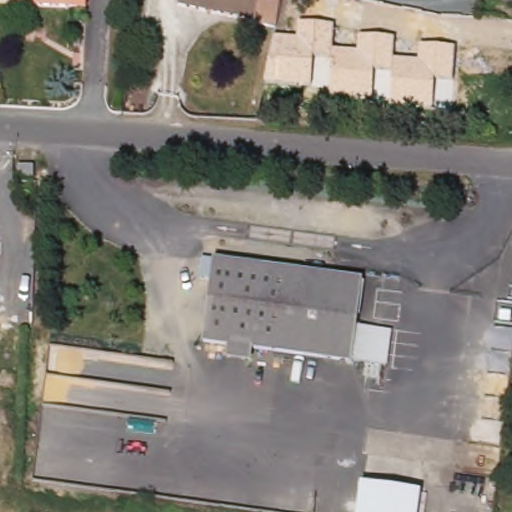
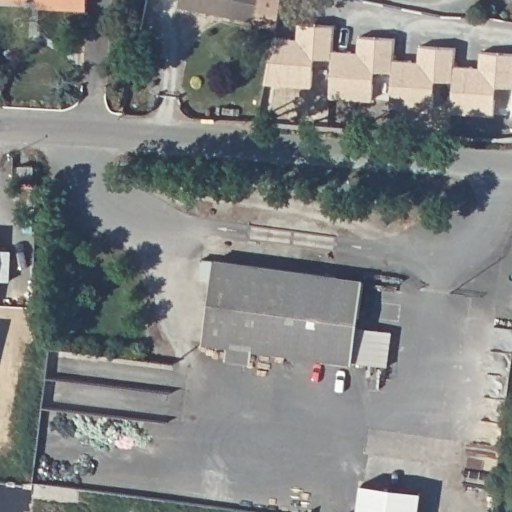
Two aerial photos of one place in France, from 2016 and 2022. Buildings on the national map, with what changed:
unchanged [(183,7),(184,0),(264,0),(260,22),(183,7)]
unchanged [(283,0),(278,24),(260,22),(264,0),(283,0)]
unchanged [(272,38),(298,39),(299,24),(334,25),(333,50),(359,51),(360,36),(394,38),(394,58),(419,60),(420,45),(456,47),(454,80),(434,81),(434,109),(391,107),(392,70),(374,69),(372,98),(331,95),(332,59),(314,58),(311,85),(264,81),(272,38)]
new [(481,66),(481,51),(512,53),(512,86),(496,85),(494,114),(452,111),(454,80),(455,64),(481,66)]
unchanged [(30,166),(29,176),(15,175),(16,165),(16,164),(30,166)]
unchanged [(0,251),(0,235),(1,235),(0,251)]
unchanged [(365,281),(351,362),(202,339),(214,258),(365,281)]
unchanged [(512,296),(512,322),(506,322),(510,295),(512,296)]
unchanged [(423,492),(420,512),(360,512),(364,486),(423,492)]

